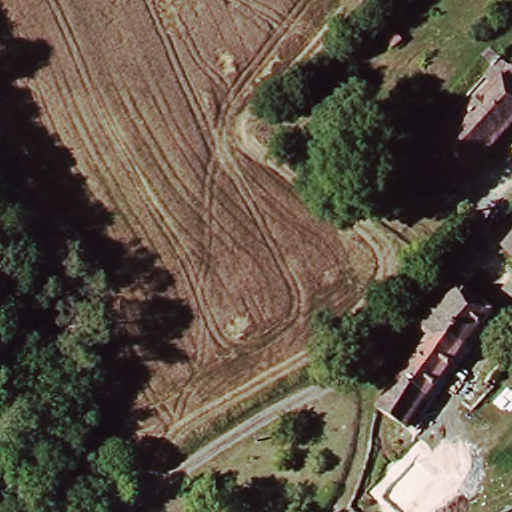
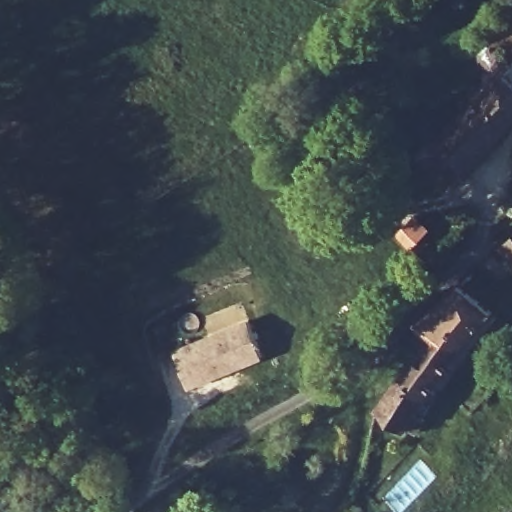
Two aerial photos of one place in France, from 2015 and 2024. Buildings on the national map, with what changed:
unchanged [(502,75),(512,85),(512,122),(463,173),(435,145),(502,75)]
unchanged [(499,244),(512,233),(512,258),(499,244)]
unchanged [(415,329),(458,287),(490,313),(435,388),(405,430),(373,410),(428,340),(415,329)]
new [(175,349),(246,320),(263,357),(189,388),(175,349)]

